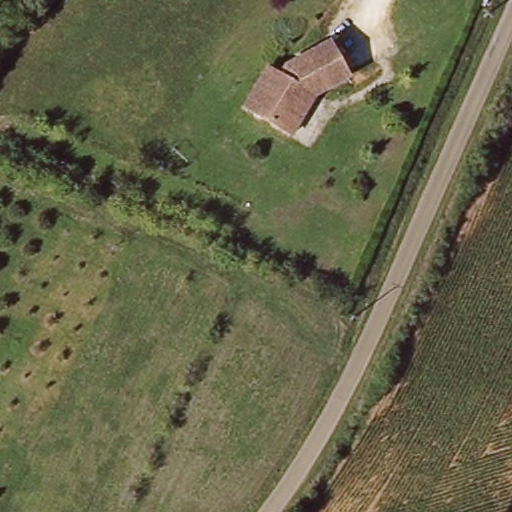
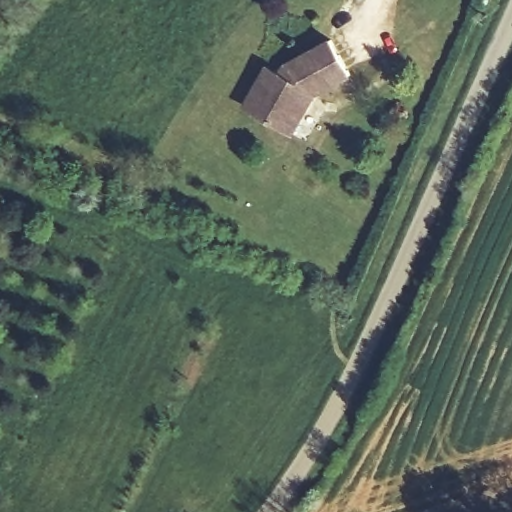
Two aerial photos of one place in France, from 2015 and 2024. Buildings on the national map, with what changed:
unchanged [(267,61),(281,67),(286,58),(328,35),(347,69),(312,88),(292,128),(257,109),(245,102),(267,61)]

